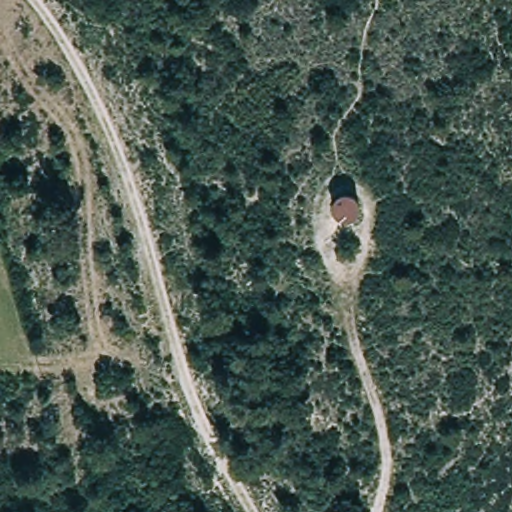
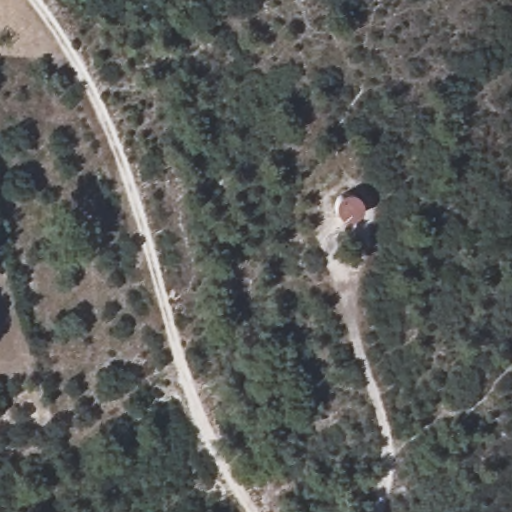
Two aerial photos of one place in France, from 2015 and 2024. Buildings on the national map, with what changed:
unchanged [(344,197),(350,193),(356,193),(363,197),(367,205),(368,218),(357,224),(344,226),(337,209),(344,197)]

